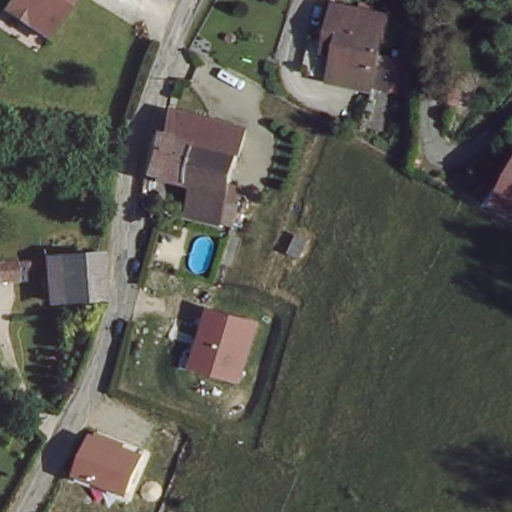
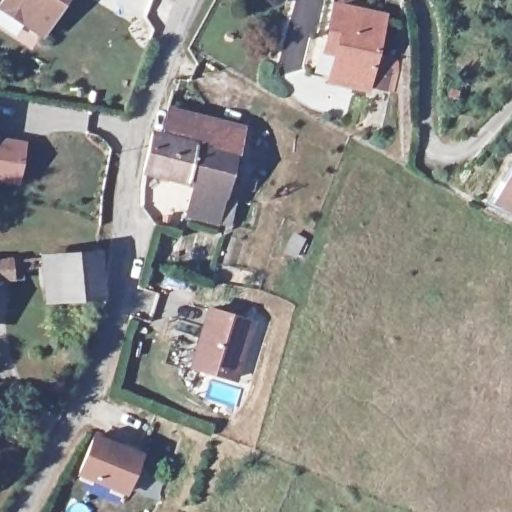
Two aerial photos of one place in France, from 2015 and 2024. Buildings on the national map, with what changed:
unchanged [(0,12),(0,6),(4,0),(65,0),(42,37),(0,12)]
unchanged [(383,21),(372,86),(371,92),(330,84),(337,49),(327,46),(330,30),(334,10),(383,21)]
unchanged [(228,177),(230,178),(237,180),(242,181),(229,230),(181,215),(189,186),(142,174),(153,137),(162,140),(169,112),(240,133),(232,160),(228,177)]
new [(22,141),(13,186),(0,184),(0,138),(22,141)]
unchanged [(512,167),(512,211),(494,202),(512,167)]
unchanged [(97,296),(48,300),(45,258),(93,255),(97,296)]
unchanged [(3,261),(16,260),(17,276),(0,277),(0,262),(3,261)]
unchanged [(239,384),(188,370),(205,308),(257,322),(239,384)]
unchanged [(114,487),(73,472),(88,431),(130,446),(114,487)]

